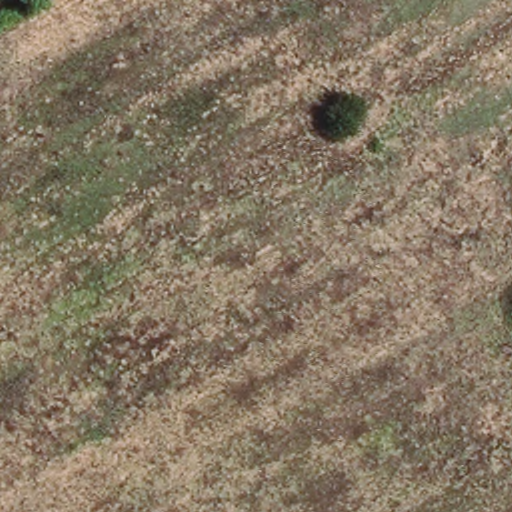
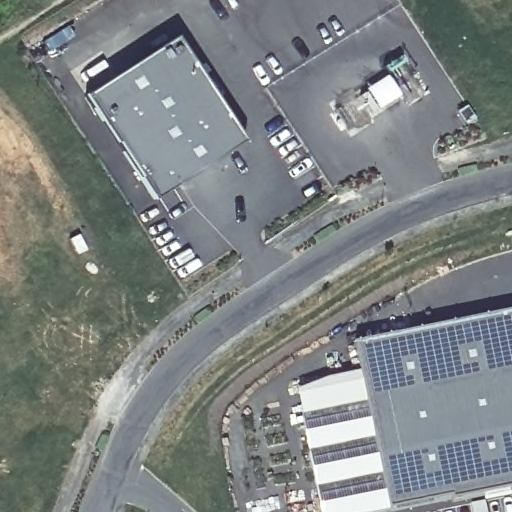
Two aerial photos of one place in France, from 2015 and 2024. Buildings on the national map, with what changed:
new [(86,94),(176,36),(242,139),(153,198),(86,94)]
new [(328,379),(362,371),(356,344),(512,312),(512,488),(392,512),(389,512),(322,512),(298,391),(328,379)]

